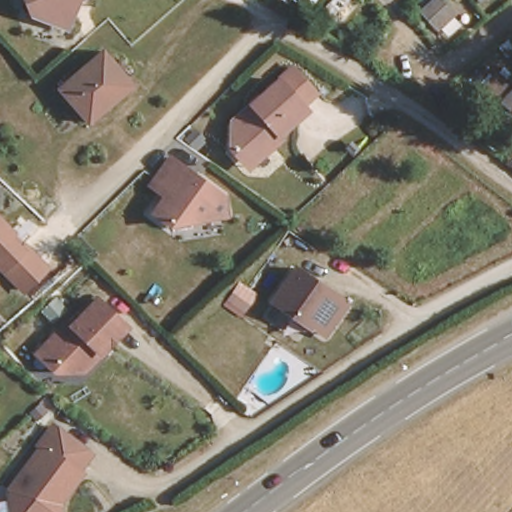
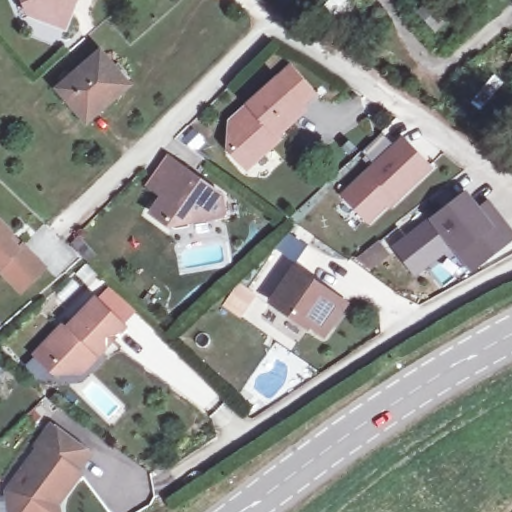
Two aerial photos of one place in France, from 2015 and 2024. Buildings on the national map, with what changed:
unchanged [(72,2),(57,9),(62,19),(57,33),(30,23),(22,4),(13,0),(71,0),(72,2)]
unchanged [(97,51),(128,87),(87,123),(56,87),(97,51)]
unchanged [(235,150),(230,146),(232,125),(235,122),(232,119),(251,102),(292,65),(315,90),(302,102),(305,107),(279,131),(282,135),(253,160),(248,166),(235,150)]
new [(373,163),(362,152),(387,128),(397,138),(402,135),(435,168),(390,211),(387,206),(368,225),(340,195),(373,163)]
unchanged [(223,193),(227,212),(170,222),(153,211),(165,194),(170,187),(155,177),(170,156),(223,193)]
new [(465,195),(478,212),(487,205),(497,218),(512,237),(472,267),(452,241),(426,262),(414,271),(397,249),(408,239),(465,195)]
unchanged [(22,293),(0,274),(0,219),(15,235),(12,240),(21,248),(25,242),(50,268),(22,293)]
unchanged [(292,266),(342,301),(321,332),(308,323),(307,326),(269,300),(292,266)]
unchanged [(80,370),(77,374),(55,375),(52,371),(37,357),(42,352),(69,324),(72,327),(97,301),(126,329),(100,356),(84,373),(80,370)]
unchanged [(40,443),(53,425),(90,452),(77,469),(80,471),(64,493),(58,494),(54,500),(58,503),(60,512),(14,512),(11,490),(43,445),(40,443)]

